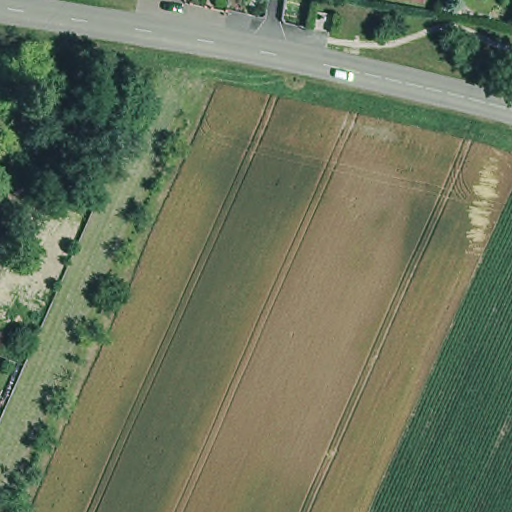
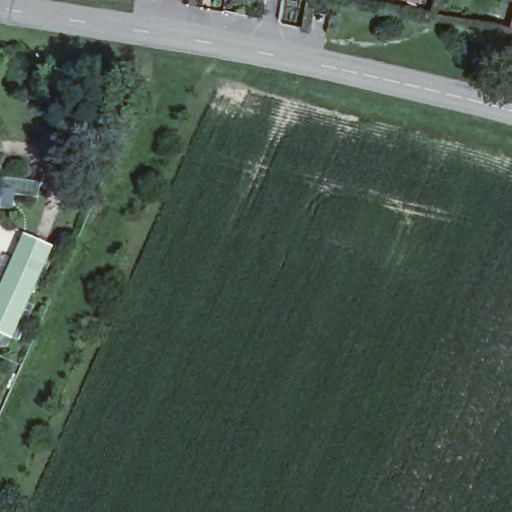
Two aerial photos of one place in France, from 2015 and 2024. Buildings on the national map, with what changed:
unchanged [(512,16),(512,27),(509,27),(512,16)]
new [(0,332),(0,289),(25,233),(55,246),(13,338),(0,332)]

